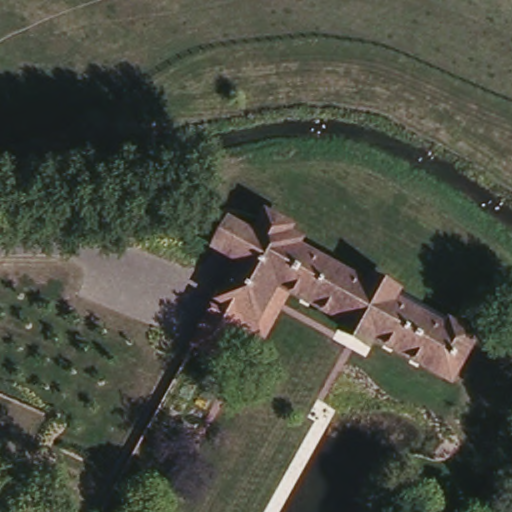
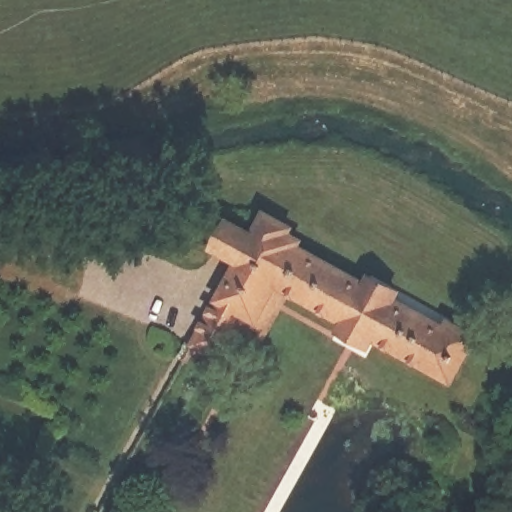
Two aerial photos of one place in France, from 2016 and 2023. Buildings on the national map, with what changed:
unchanged [(215,300),(234,268),(209,254),(229,216),(254,230),(264,210),(297,226),(294,234),(306,240),(303,246),(366,279),(370,271),(404,291),(400,299),(445,322),(447,316),(480,335),(453,385),(376,343),(370,352),(337,333),(341,323),(290,296),(260,351),(229,335),(212,362),(187,344),(215,300)]
unchanged [(0,420),(38,436),(26,464),(0,453),(0,420)]

